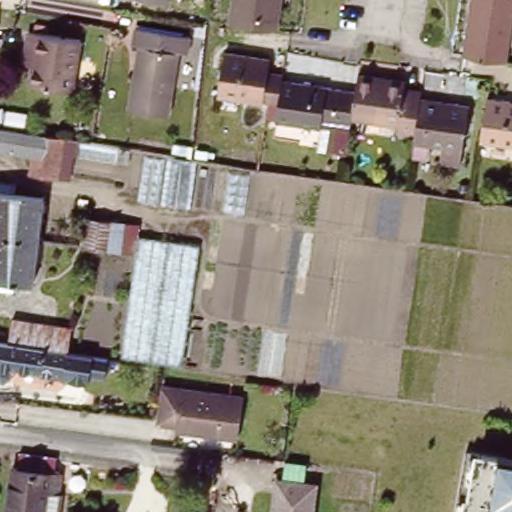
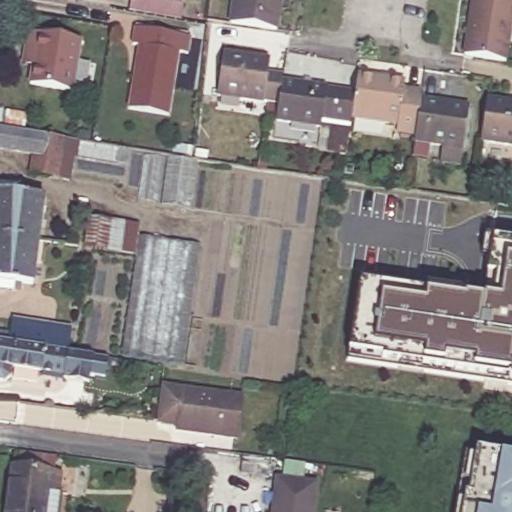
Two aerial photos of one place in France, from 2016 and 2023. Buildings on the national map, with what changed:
unchanged [(251,26),(233,24),(236,0),(283,0),(279,30),(251,26)]
unchanged [(458,54),(466,0),(510,0),(502,60),(458,54)]
unchanged [(170,114),(132,109),(143,26),(193,34),(191,51),(179,50),(170,114)]
unchanged [(34,87),(39,55),(28,54),(31,34),(83,42),(75,94),(34,87)]
unchanged [(276,106),(264,105),(215,100),(220,57),(266,63),(264,77),(279,79),(279,87),(276,106)]
unchanged [(414,129),(412,138),(394,135),(394,129),(348,121),(351,95),(353,79),(401,85),(399,92),(418,95),(417,104),(414,129)]
unchanged [(279,87),(351,95),(348,121),(346,127),(318,124),(316,132),(274,126),(276,106),(279,87)]
unchanged [(512,107),(512,149),(476,144),(482,103),(512,107)]
unchanged [(429,156),(429,151),(411,148),(411,145),(412,138),(414,129),(417,104),(464,110),(459,151),(443,149),(442,157),(429,156)]
unchanged [(41,140),(95,148),(131,154),(129,167),(75,160),(72,184),(30,178),(33,159),(0,156),(0,134),(41,140)]
unchanged [(198,159),(191,207),(161,203),(169,155),(193,158),(198,159)]
unchanged [(13,185),(13,192),(41,195),(36,240),(0,236),(0,183),(13,185)]
unchanged [(134,256),(83,250),(88,217),(139,221),(136,236),(134,256)]
unchanged [(36,240),(29,292),(11,290),(0,289),(0,236),(36,240)]
unchanged [(203,246),(183,373),(118,362),(134,256),(136,236),(203,246)]
new [(426,295),(427,289),(466,295),(464,298),(483,301),(484,299),(487,273),(494,237),(512,240),(512,384),(348,360),(349,351),(359,283),(426,295)]
unchanged [(10,325),(69,335),(65,357),(40,353),(6,348),(10,325)]
unchanged [(40,353),(65,357),(92,361),(88,388),(63,385),(63,380),(0,370),(0,347),(6,348),(40,353)]
unchanged [(158,386),(240,398),(234,440),(171,431),(172,427),(153,425),(158,386)]
unchanged [(11,390),(8,405),(0,404),(0,388),(11,390)]
unchanged [(512,512),(462,512),(465,495),(469,495),(476,450),(512,456),(512,512)]
unchanged [(11,467),(60,473),(55,512),(5,512),(11,467)]
unchanged [(313,512),(274,512),(277,486),(316,491),(313,512)]
unchanged [(202,512),(170,512),(171,502),(203,506),(202,512)]

